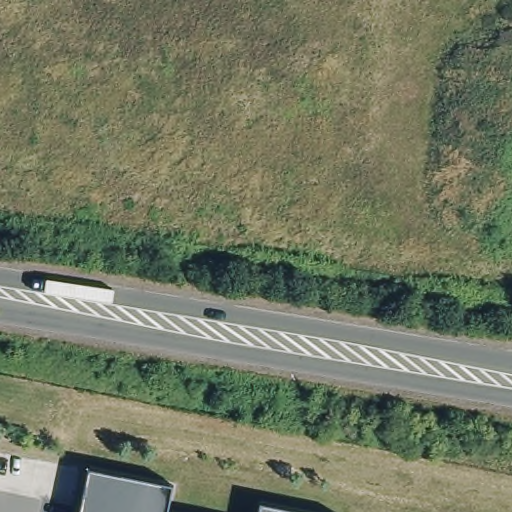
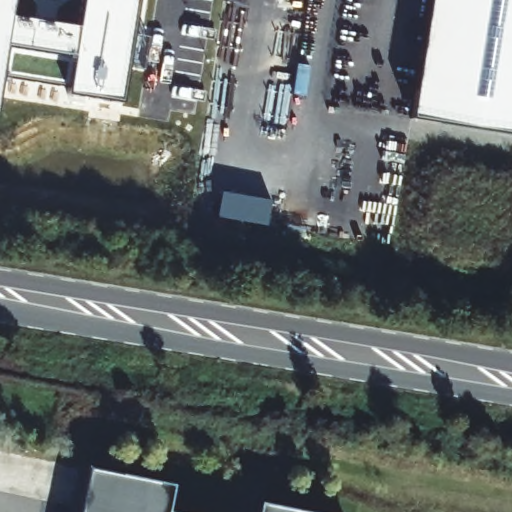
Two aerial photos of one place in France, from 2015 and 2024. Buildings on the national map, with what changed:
new [(11,16),(79,26),(83,0),(138,0),(121,100),(68,94),(69,86),(2,77),(0,92),(0,0),(14,0),(11,16)]
new [(431,0),(512,0),(512,133),(411,116),(431,0)]
unchanged [(170,483),(164,512),(80,512),(89,469),(170,483)]
unchanged [(316,512),(253,512),(255,502),(316,512)]

